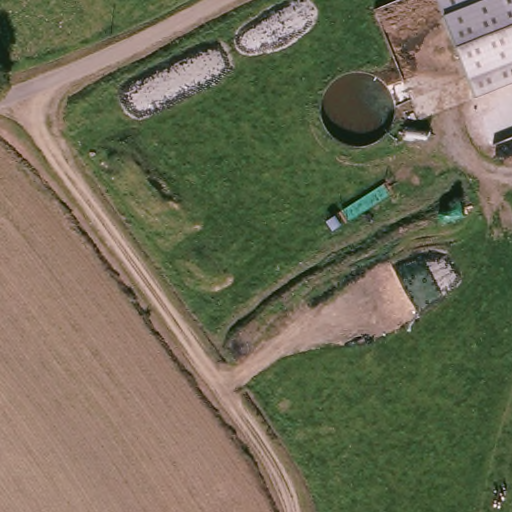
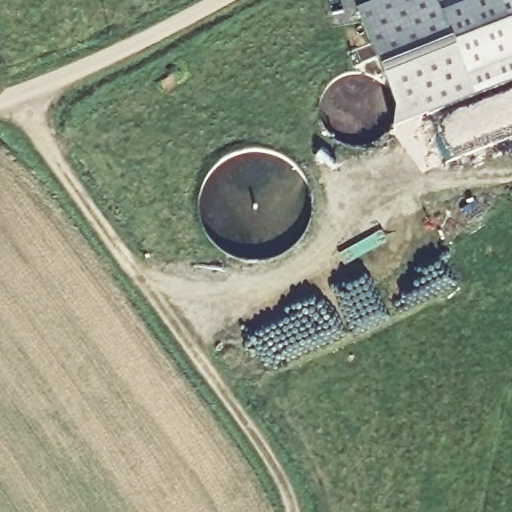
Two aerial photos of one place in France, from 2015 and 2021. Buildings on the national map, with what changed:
new [(473,99),(394,129),(397,110),(358,10),(386,0),(434,0),(473,99)]
unchanged [(473,99),(434,0),(512,0),(512,84),(473,99)]

